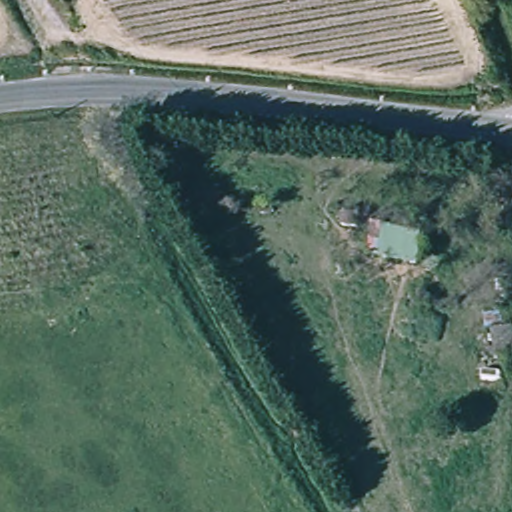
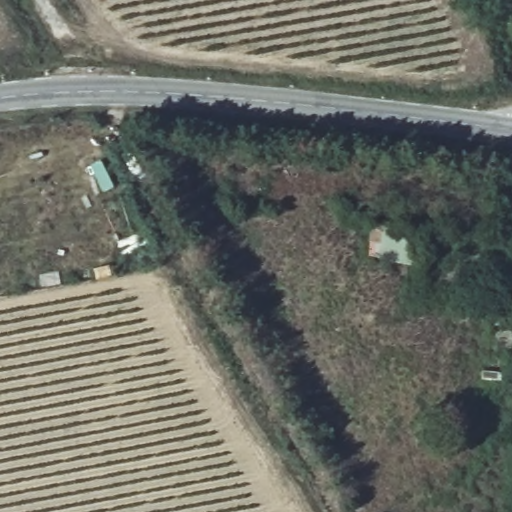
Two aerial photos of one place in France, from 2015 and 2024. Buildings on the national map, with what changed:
unchanged [(422,234),(418,266),(376,257),(377,256),(368,255),(372,222),(384,225),(383,227),(422,234)]
unchanged [(512,311),(512,358),(482,360),(485,312),(512,311)]

